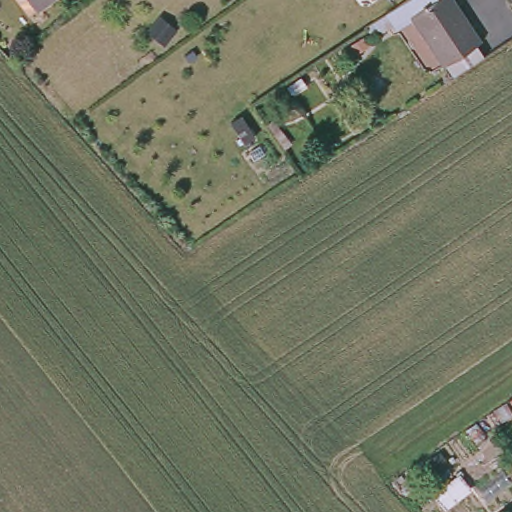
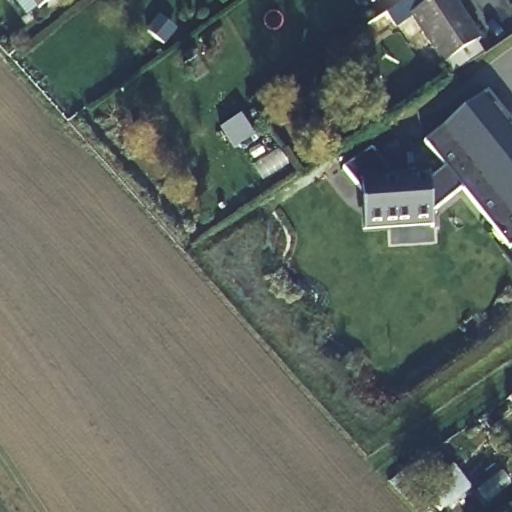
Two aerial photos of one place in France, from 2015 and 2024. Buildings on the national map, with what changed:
unchanged [(31,0),(49,0),(38,9),(31,0)]
unchanged [(445,63),(442,65),(410,15),(394,26),(385,13),(404,0),(452,0),(479,40),(477,41),(485,54),(452,75),(445,63)]
unchanged [(402,73),(415,88),(405,96),(392,81),(402,73)]
new [(442,168),(422,143),(485,92),(487,95),(482,99),(512,135),(512,245),(507,249),(460,190),(430,214),(428,180),(442,168)]
new [(512,135),(482,99),(487,95),(512,125),(512,135)]
unchanged [(280,128),(291,143),(284,149),(273,134),(280,128)]
new [(431,228),(429,228),(428,222),(364,227),(363,209),(361,208),(360,193),(341,169),(370,150),(397,184),(426,182),(428,180),(431,228)]
new [(512,246),(511,246),(512,245),(512,246)]

